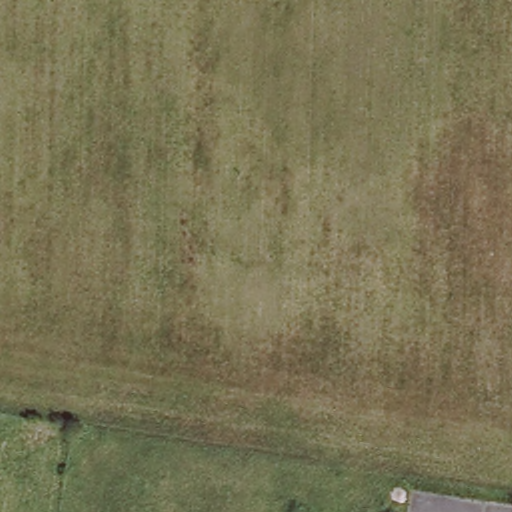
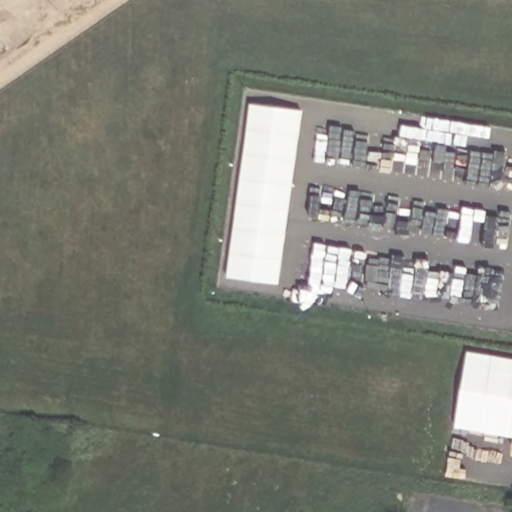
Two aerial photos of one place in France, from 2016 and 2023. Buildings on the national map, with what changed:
new [(249,102),(304,109),(280,282),(226,275),(249,102)]
new [(512,357),(512,435),(457,425),(469,350),(512,357)]

